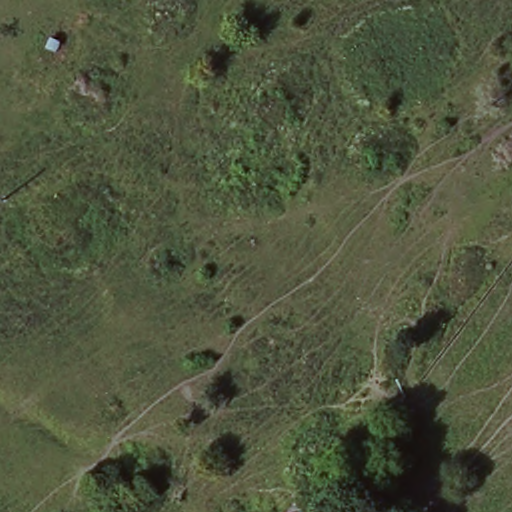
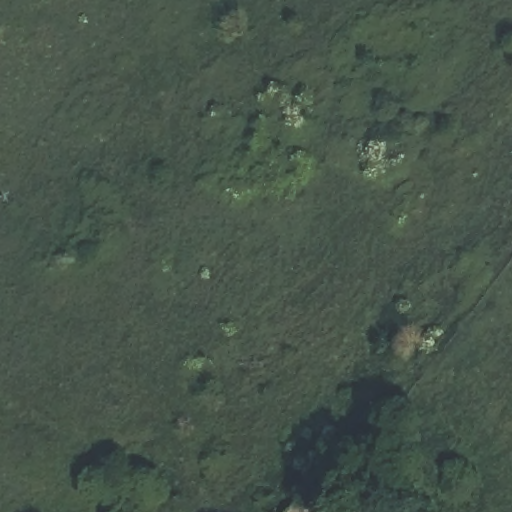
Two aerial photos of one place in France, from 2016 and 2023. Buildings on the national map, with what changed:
[]

